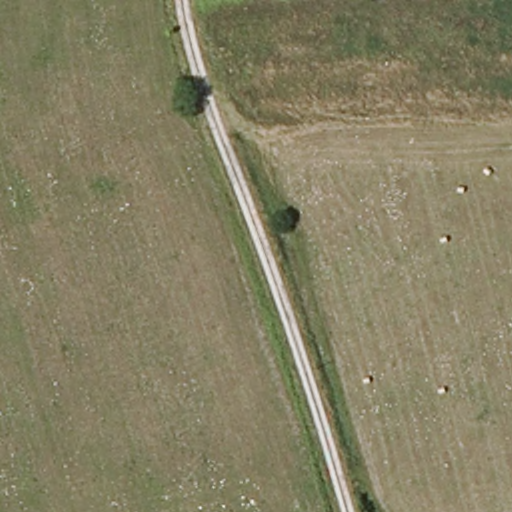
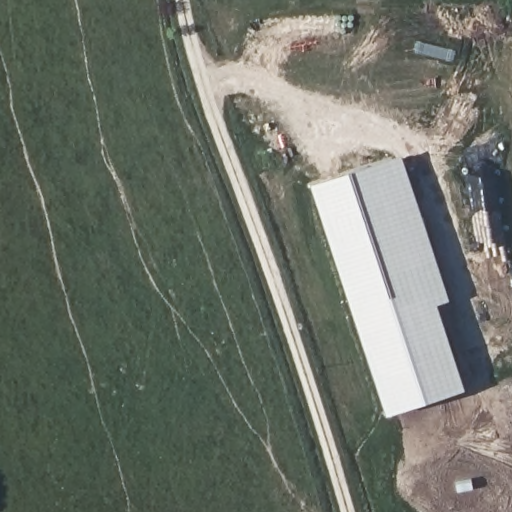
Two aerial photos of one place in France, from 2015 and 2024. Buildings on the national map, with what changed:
new [(312,186),(401,156),(448,301),(435,305),(464,391),(387,416),(312,186)]

